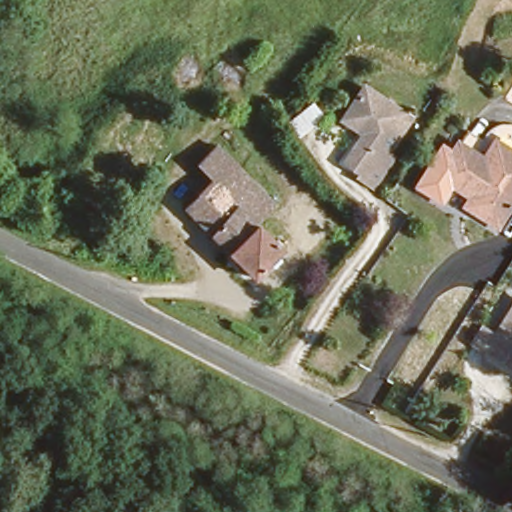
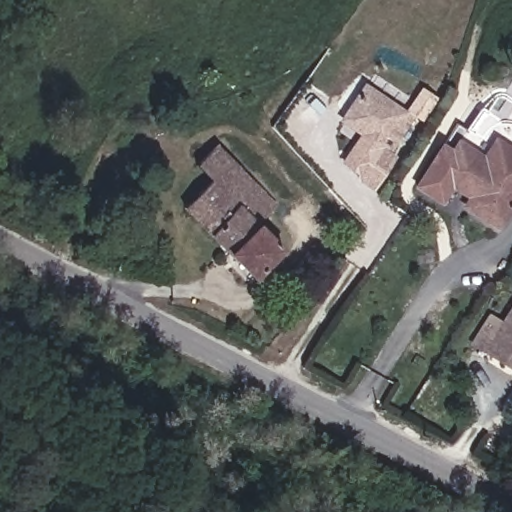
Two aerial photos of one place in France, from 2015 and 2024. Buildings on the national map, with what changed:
unchanged [(411,122),(385,155),(391,160),(368,189),(354,178),(357,174),(341,162),(362,134),(342,119),(352,106),(366,88),(411,122)]
unchanged [(512,200),(502,215),(466,191),(471,183),(438,159),(460,127),(512,161),(512,200)]
unchanged [(212,181),(193,163),(214,142),(278,200),(259,223),(284,246),(258,275),(186,208),(212,181)]
unchanged [(489,355),(512,309),(512,367),(503,363),(489,355)]

